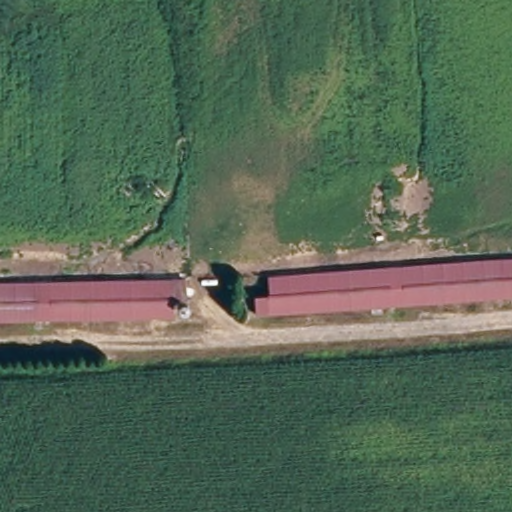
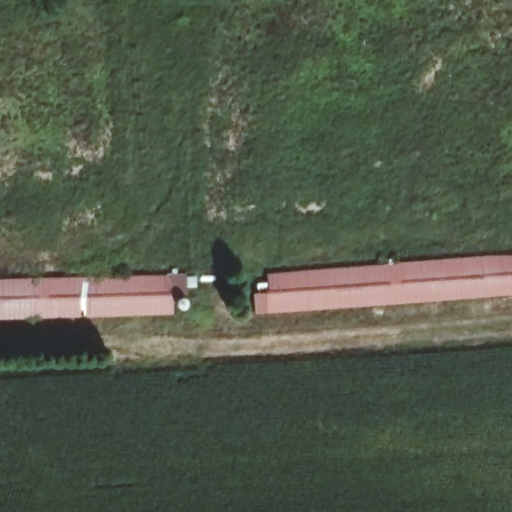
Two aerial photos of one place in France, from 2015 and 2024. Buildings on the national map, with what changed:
unchanged [(266,312),(263,272),(512,258),(512,297),(266,312)]
unchanged [(174,315),(0,320),(0,283),(185,276),(189,293),(171,295),(174,315)]

